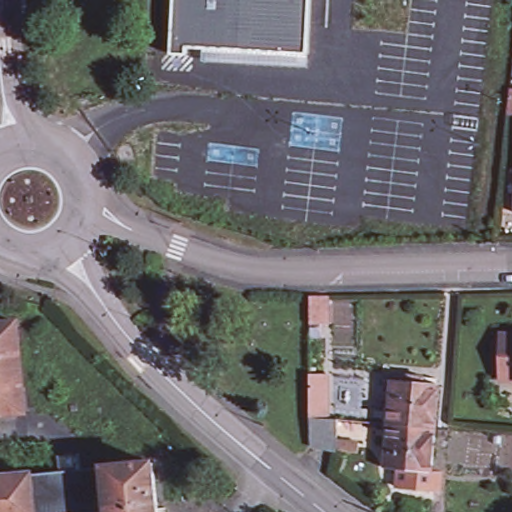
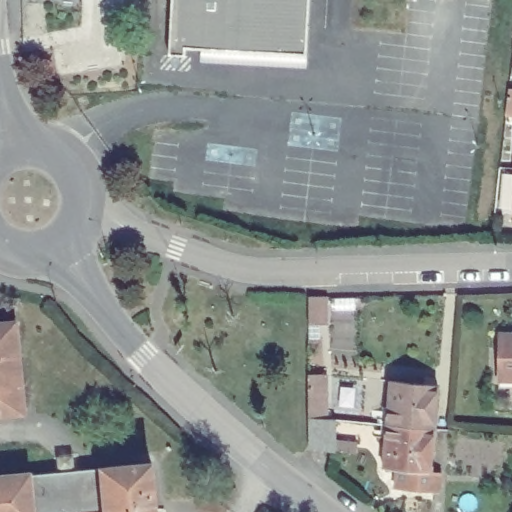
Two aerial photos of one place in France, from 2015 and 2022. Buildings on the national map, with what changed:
unchanged [(201,49),(185,48),(184,55),(168,54),(170,0),(308,0),(306,54),(201,49)]
unchanged [(306,54),(305,66),(200,60),(201,49),(306,54)]
unchanged [(512,96),(512,116),(510,116),(512,96)]
unchanged [(331,324),(314,324),(314,297),(331,297),(331,324)]
unchanged [(25,415),(0,418),(0,329),(14,327),(25,415)]
unchanged [(503,330),(512,330),(512,376),(499,375),(503,330)]
unchanged [(314,447),(314,420),(314,373),(331,374),(331,420),(341,420),(341,451),(314,447)]
unchanged [(396,381),(409,382),(410,375),(425,376),(425,383),(442,385),(439,428),(393,425),(396,381)]
unchanged [(436,472),(418,471),(418,476),(403,476),(404,470),(390,468),(393,425),(439,428),(436,472)]
unchanged [(103,465),(154,461),(158,512),(108,512),(103,465)]
unchanged [(103,465),(108,512),(0,512),(0,475),(103,465)]

